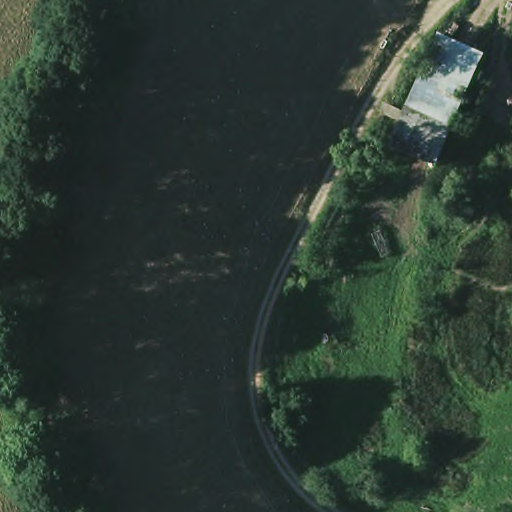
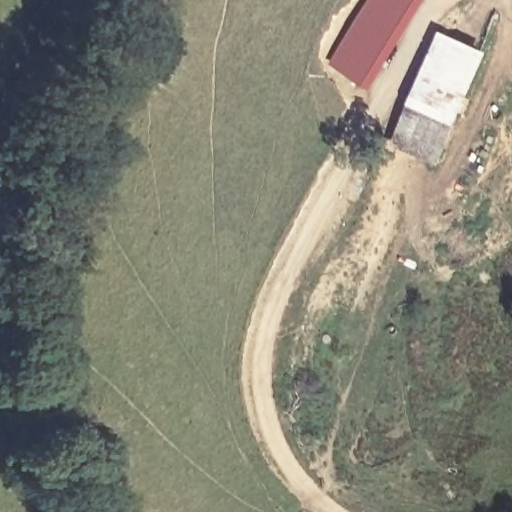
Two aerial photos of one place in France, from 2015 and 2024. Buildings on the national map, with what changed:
new [(330,66),(373,0),(435,0),(375,93),(330,66)]
unchanged [(439,169),(397,150),(430,71),(446,34),(493,55),(439,169)]

